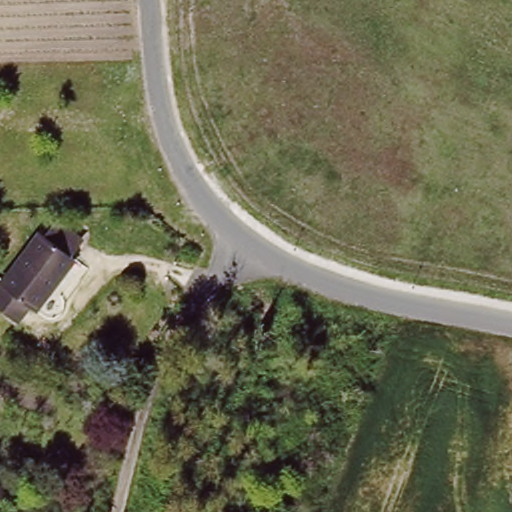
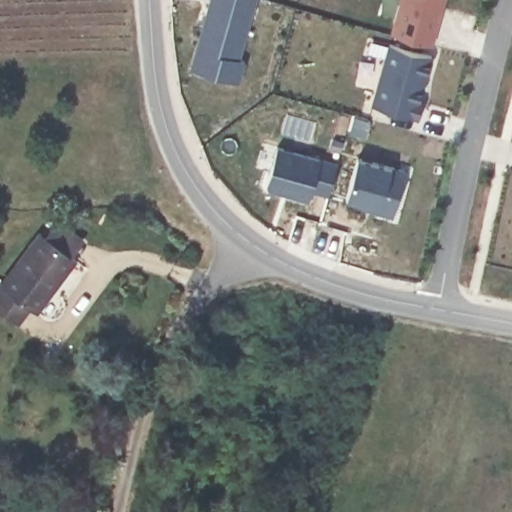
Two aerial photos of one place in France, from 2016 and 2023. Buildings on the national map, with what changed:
new [(245,61),(237,81),(191,68),(209,0),(255,0),(238,59),(245,61)]
new [(392,32),(400,0),(445,0),(433,44),(392,32)]
new [(421,100),(425,101),(419,117),(372,104),(389,44),(434,56),(421,100)]
new [(306,199),(265,187),(270,170),(257,166),(262,145),(275,150),(276,145),(320,158),(306,199)]
new [(392,217),(359,207),(360,202),(345,197),(358,158),(392,166),(405,171),(392,217)]
unchanged [(27,307),(17,322),(0,309),(0,282),(39,232),(41,234),(52,220),(82,242),(72,256),(74,257),(33,311),(27,307)]

